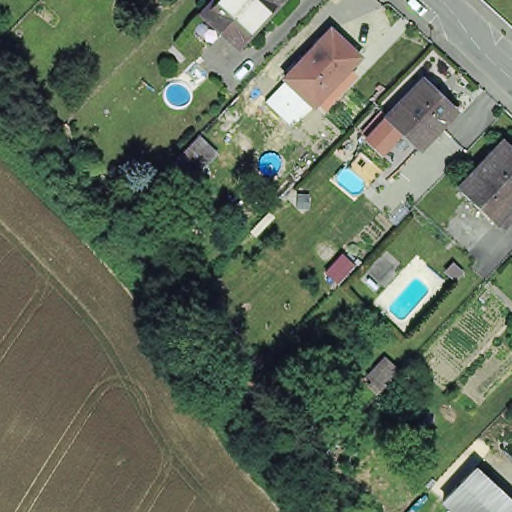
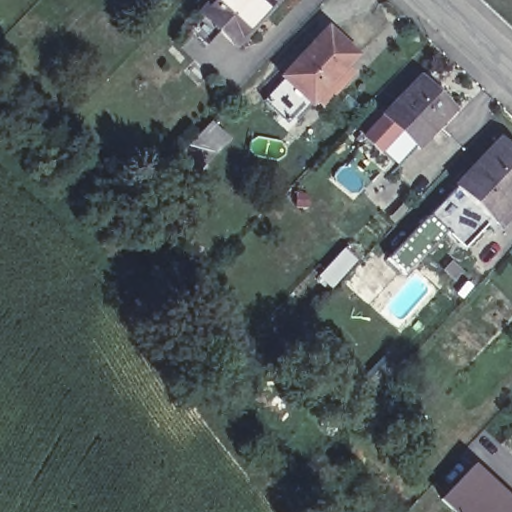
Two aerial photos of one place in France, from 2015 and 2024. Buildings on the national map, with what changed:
unchanged [(207,0),(266,0),(268,2),(237,35),(204,4),(207,0)]
unchanged [(325,24),(354,52),(309,101),(279,73),(325,24)]
unchanged [(417,80),(449,110),(415,147),(383,117),(417,80)]
unchanged [(502,221),(495,214),(458,179),(501,133),(512,143),(512,210),(502,221)]
unchanged [(193,139),(211,155),(200,168),(194,176),(175,158),(182,151),(193,139)]
unchanged [(384,359),(400,372),(398,374),(382,391),(367,378),(384,359)]
unchanged [(471,468),(512,506),(512,512),(453,512),(440,501),(471,468)]

